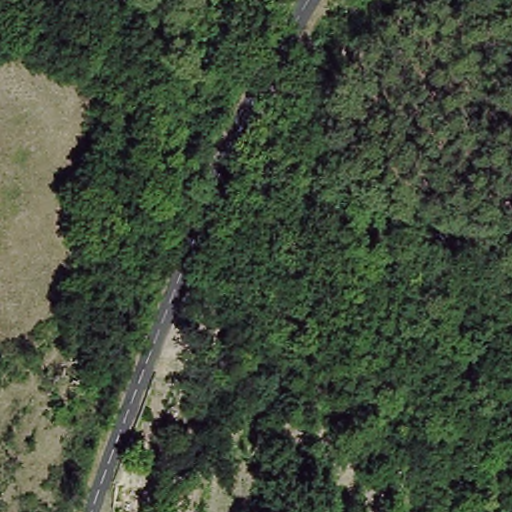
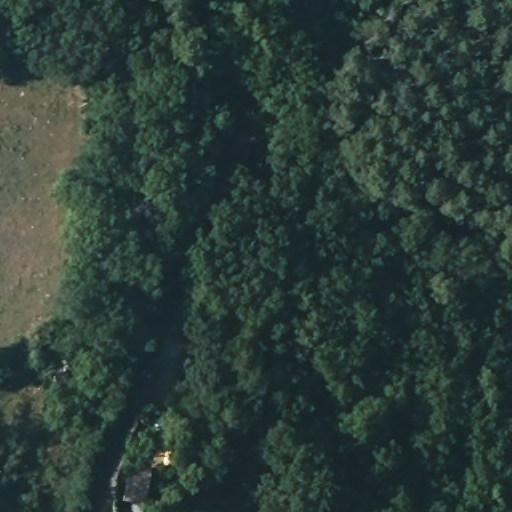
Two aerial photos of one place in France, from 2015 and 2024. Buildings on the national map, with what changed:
unchanged [(56,374),(59,352),(81,352),(77,376),(56,374)]
unchanged [(112,485),(133,486),(132,505),(110,504),(112,485)]

